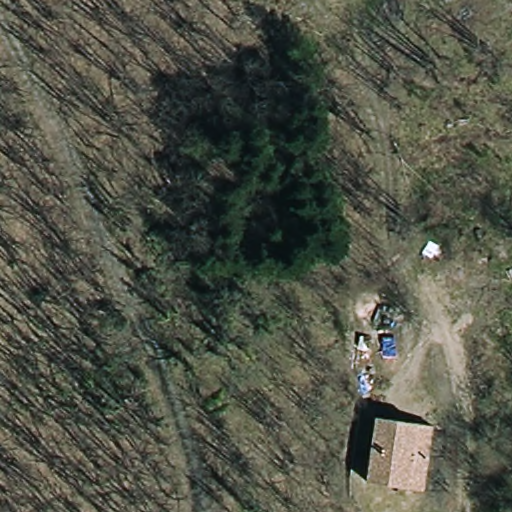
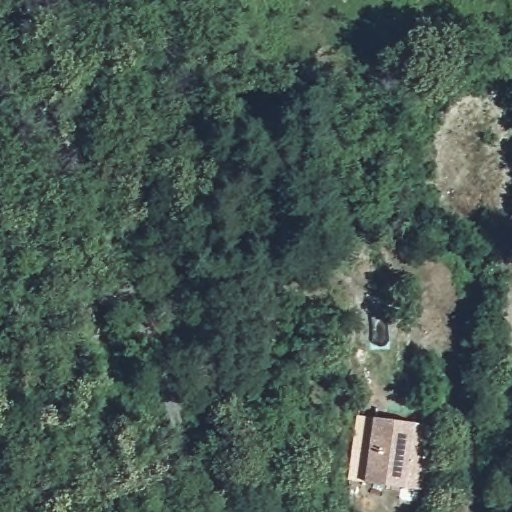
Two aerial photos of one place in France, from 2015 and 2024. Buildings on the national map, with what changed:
unchanged [(437,438),(430,502),(373,497),(380,432),(437,438)]

